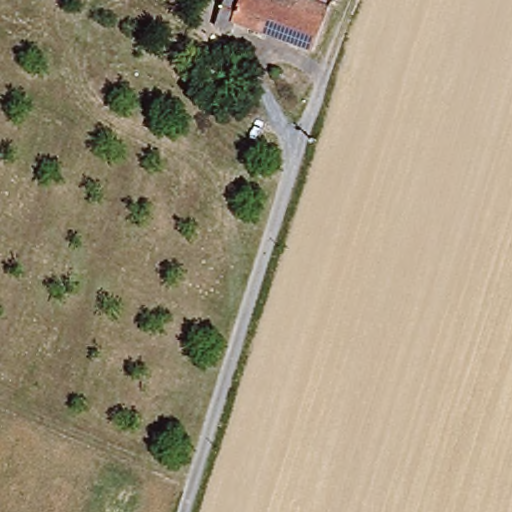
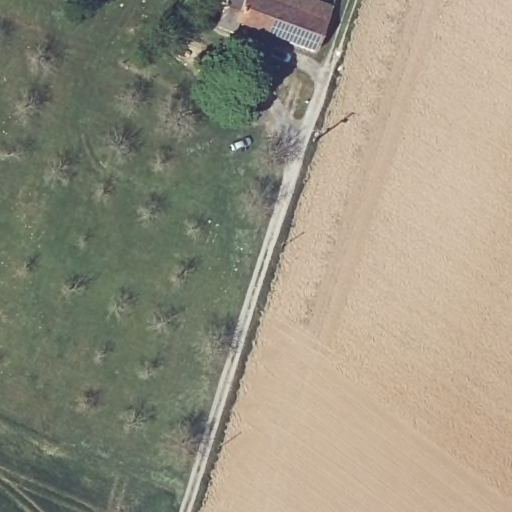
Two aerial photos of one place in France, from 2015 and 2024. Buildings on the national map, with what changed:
unchanged [(215,20),(219,11),(224,0),(250,0),(267,5),(270,0),(293,0),(297,1),(298,0),(327,0),(338,4),(323,56),(236,21),(232,31),(214,24),(215,20)]

